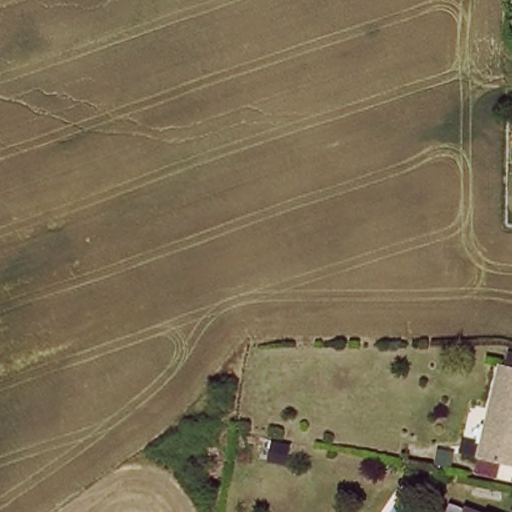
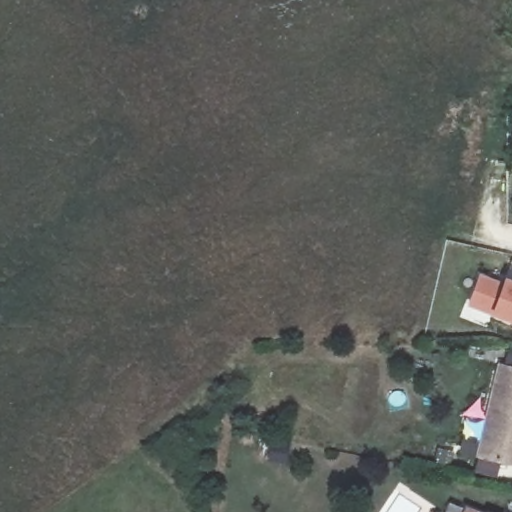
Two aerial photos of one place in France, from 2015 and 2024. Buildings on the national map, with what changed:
new [(504,286),(506,281),(512,283),(512,321),(470,305),(481,277),(504,286)]
unchanged [(494,465),(478,462),(480,450),(498,367),(512,369),(512,469),(511,469),(494,465)]
unchanged [(474,500),(492,512),(466,512),(474,500)]

